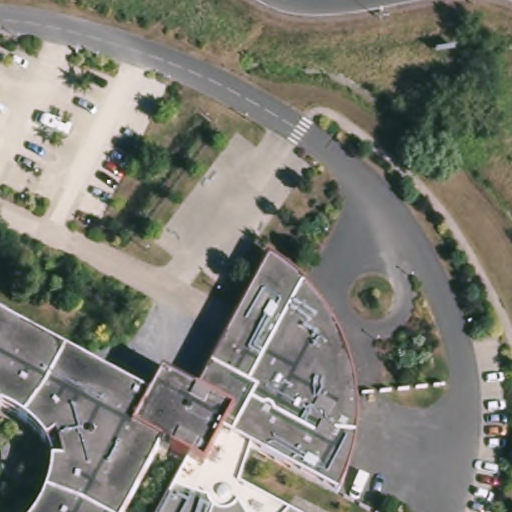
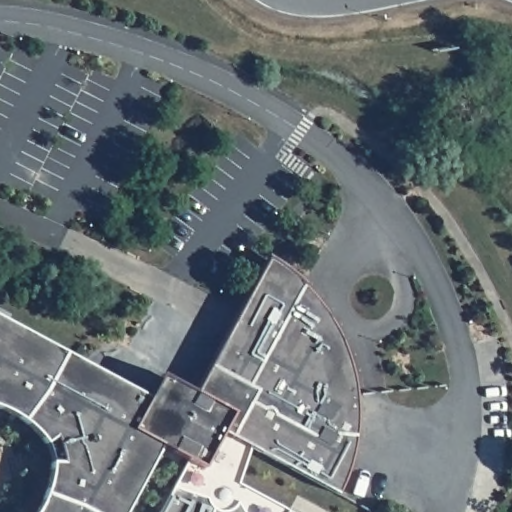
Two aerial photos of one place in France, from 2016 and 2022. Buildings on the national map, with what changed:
unchanged [(37,508),(43,498),(47,487),(50,476),(52,466),(52,458),(50,454),(47,448),(39,438),(31,430),(22,423),(11,416),(0,411),(0,325),(152,405),(162,386),(195,403),(222,352),(258,286),(267,268),(276,273),(281,276),(291,283),(301,290),(307,297),(316,305),(320,310),(326,317),(333,327),(338,335),(342,343),(347,354),(352,369),(357,387),(359,396),(361,411),(361,426),(358,448),(356,463),(351,478),(347,489),(344,495),(340,503),(256,459),(242,485),(288,510),(296,496),(325,512),(156,512),(185,462),(163,451),(128,512),(35,512),(37,508)]

